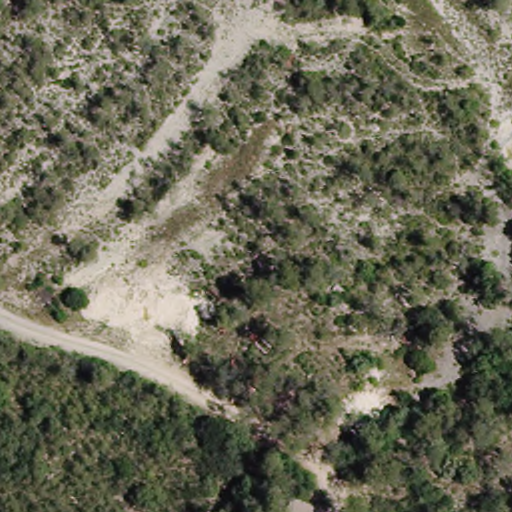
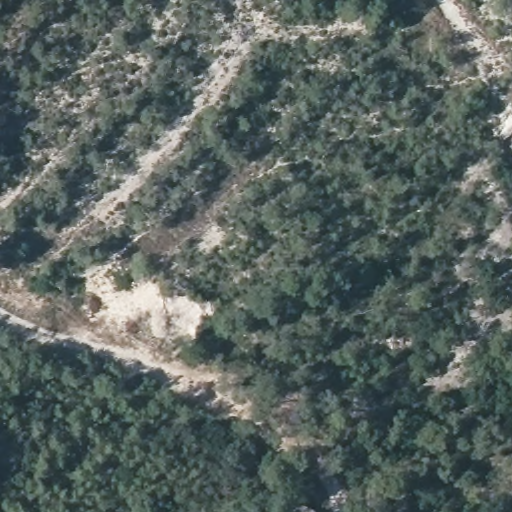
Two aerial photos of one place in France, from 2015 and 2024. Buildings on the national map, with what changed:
unchanged [(326,512),(290,512),(298,497),(326,512)]

